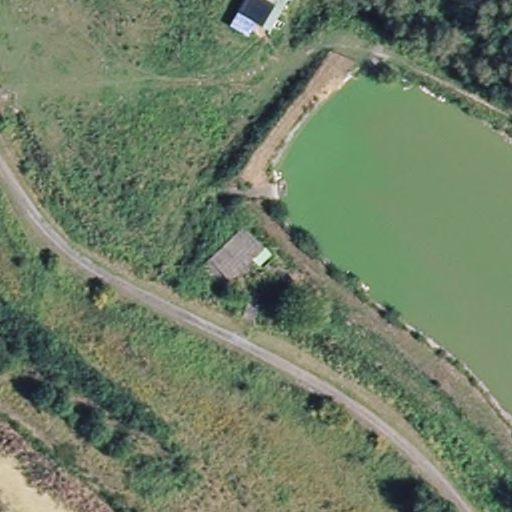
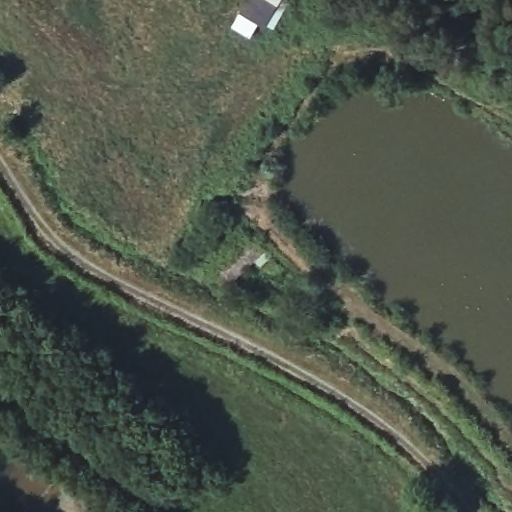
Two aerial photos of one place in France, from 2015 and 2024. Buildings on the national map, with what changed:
unchanged [(245,33),(231,22),(245,0),(290,0),(268,26),(254,20),(245,33)]
unchanged [(228,286),(206,261),(250,226),(272,251),(228,286)]

